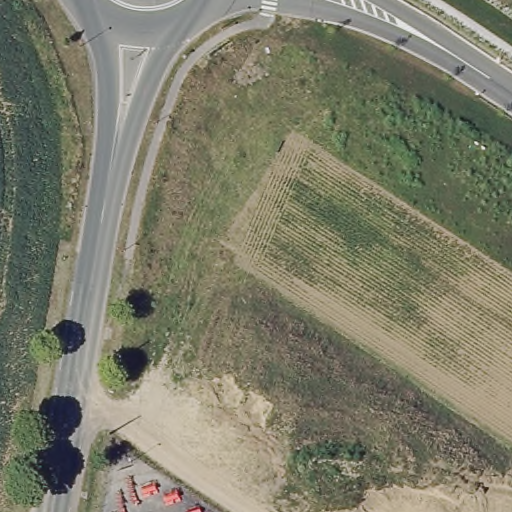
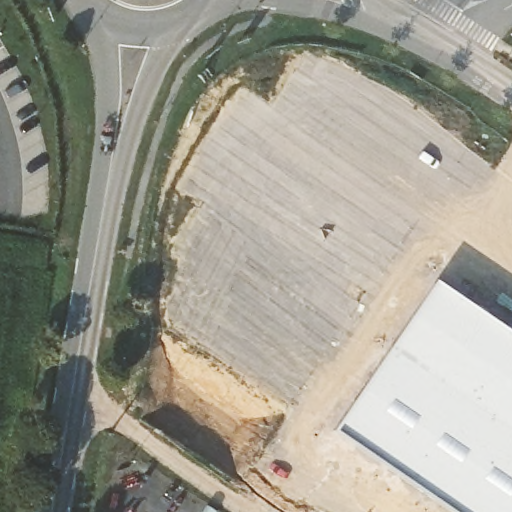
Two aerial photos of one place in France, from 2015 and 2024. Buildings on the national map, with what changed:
new [(334,431),(435,281),(512,333),(512,512),(452,512),(334,431)]

